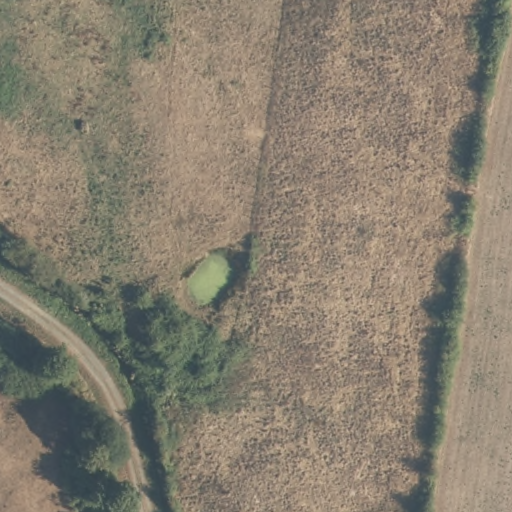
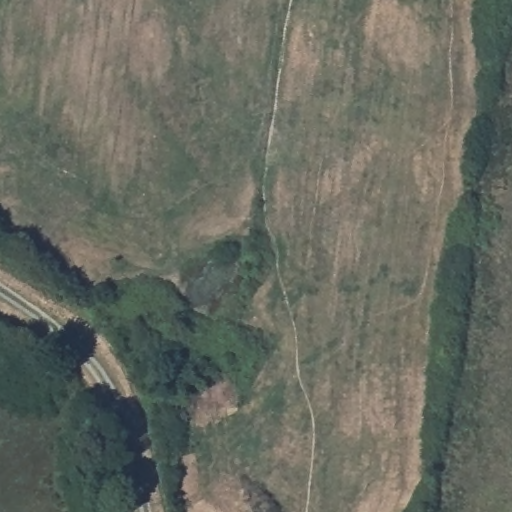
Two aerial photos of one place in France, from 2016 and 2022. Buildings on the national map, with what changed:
[]

